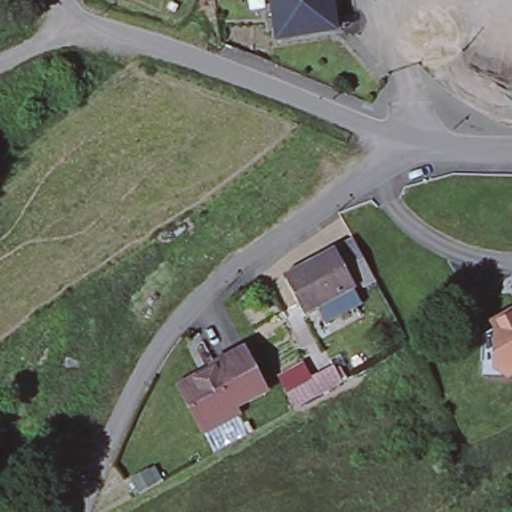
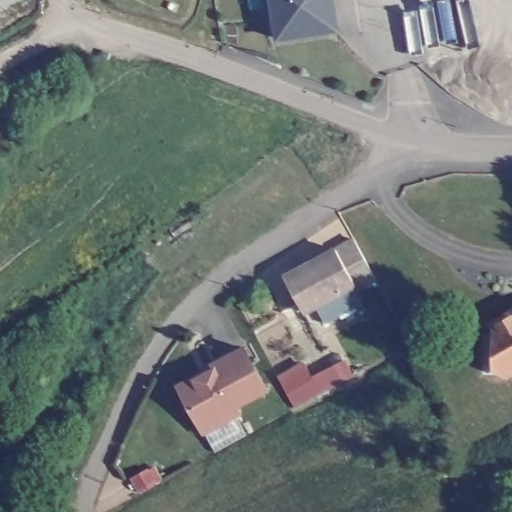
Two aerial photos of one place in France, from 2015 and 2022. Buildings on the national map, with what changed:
unchanged [(336,29),(279,37),(273,0),(332,0),(336,29)]
unchanged [(310,324),(302,307),(289,315),(270,281),(295,268),(294,266),(320,251),(338,240),(345,254),(360,280),(342,290),(340,286),(337,288),(345,304),(310,324)]
unchanged [(510,368),(484,368),(484,348),(492,343),(483,328),(480,323),(507,307),(512,305),(512,367),(510,368)]
unchanged [(225,426),(207,436),(181,390),(201,378),(202,380),(215,373),(212,369),(244,351),(268,393),(238,410),(242,416),(225,426)]
unchanged [(287,394),(335,367),(343,381),(295,407),(287,394)]
unchanged [(163,479),(137,492),(128,476),(155,465),(163,479)]

